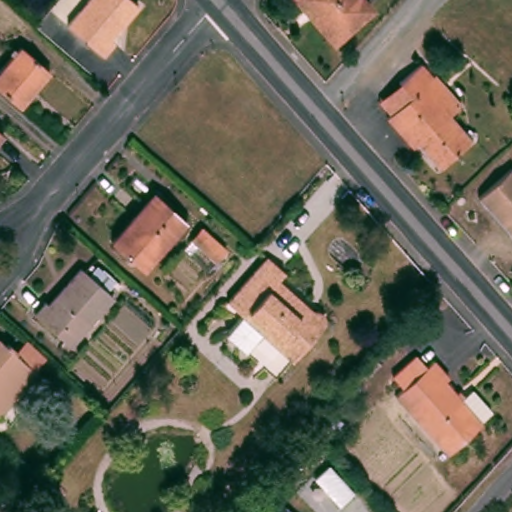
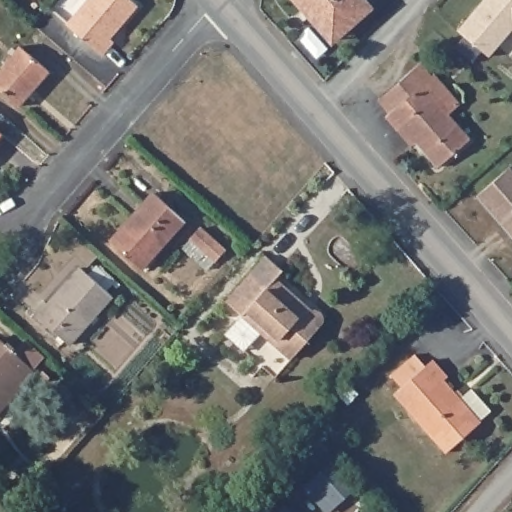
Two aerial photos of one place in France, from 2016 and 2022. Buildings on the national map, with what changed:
unchanged [(86,0),(129,0),(137,8),(108,40),(111,43),(100,56),(65,23),(86,0)]
unchanged [(372,9),(333,42),(297,0),(364,0),(372,9)]
new [(484,0),(512,0),(512,32),(491,57),(459,30),(484,0)]
unchanged [(46,69),(15,102),(0,88),(0,61),(17,43),(46,69)]
unchanged [(384,112),(388,109),(376,95),(396,77),(410,65),(419,58),(430,70),(432,69),(458,99),(447,108),(470,135),(438,162),(416,137),(410,142),(397,127),(384,112)]
unchanged [(512,170),(512,237),(478,198),(511,168),(512,170)]
unchanged [(185,224),(139,272),(106,242),(152,194),(185,224)]
unchanged [(208,226),(230,248),(220,258),(198,236),(208,226)]
unchanged [(237,292),(283,247),(298,262),(291,270),(316,294),(313,297),(322,305),(327,301),(336,303),(339,308),(340,315),(334,323),(331,321),(280,375),(235,329),(254,309),(237,292)]
unchanged [(113,300),(69,347),(31,312),(44,300),(48,305),(81,270),(113,300)]
unchanged [(0,334),(1,333),(21,351),(36,336),(51,351),(38,366),(1,407),(0,406),(0,334)]
unchanged [(404,388),(393,376),(415,356),(427,368),(435,361),(453,382),(449,386),(466,404),(477,395),(495,418),(447,455),(397,394),(404,388)]
unchanged [(16,431),(35,448),(26,458),(8,441),(16,431)]

